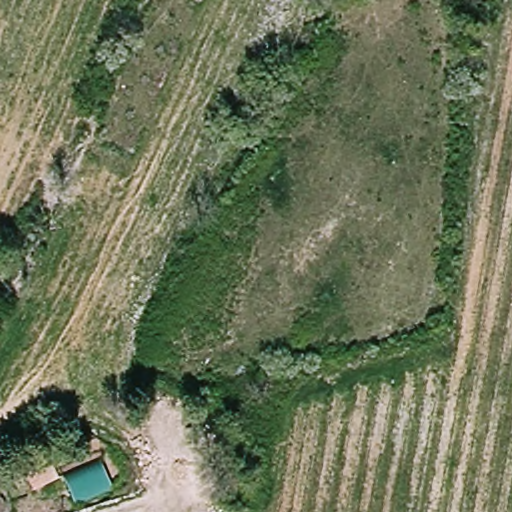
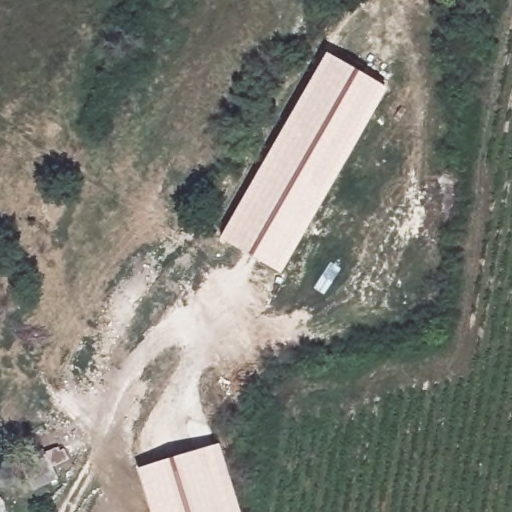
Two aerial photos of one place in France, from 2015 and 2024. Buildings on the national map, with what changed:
new [(326,55),(388,90),(282,275),(220,240),(326,55)]
new [(220,445),(240,512),(151,512),(137,470),(220,445)]
demolished [(114,490),(75,506),(62,476),(101,460),(114,490)]

